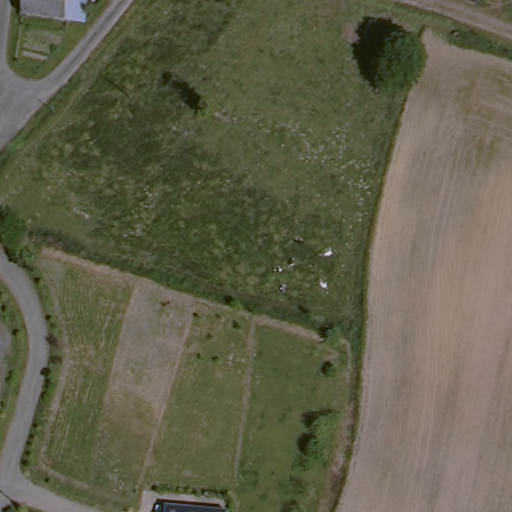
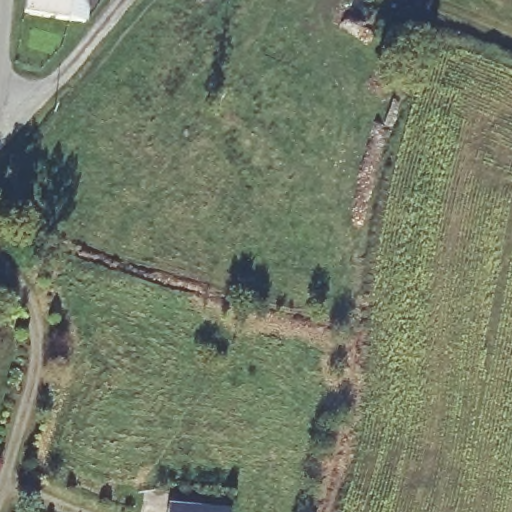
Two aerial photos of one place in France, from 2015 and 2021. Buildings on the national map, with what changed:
unchanged [(82,20),(24,5),(25,0),(87,0),(82,20)]
unchanged [(402,50),(396,63),(372,51),(377,39),(402,50)]
unchanged [(168,512),(168,509),(206,512),(168,512)]

